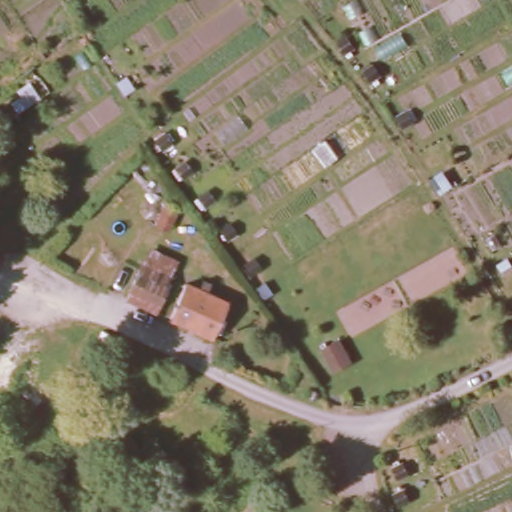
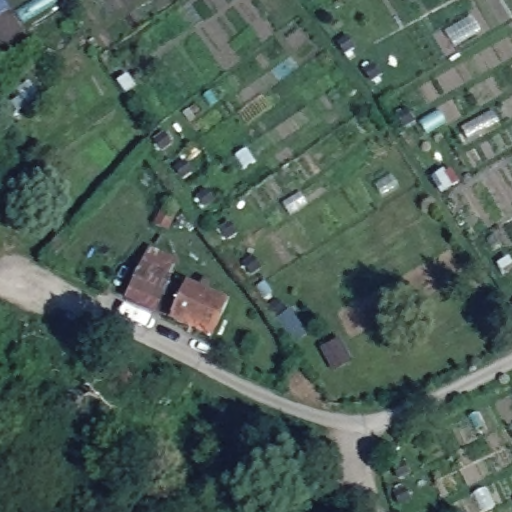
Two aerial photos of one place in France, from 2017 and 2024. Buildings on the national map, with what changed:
unchanged [(176,261),(161,293),(137,282),(151,250),(176,261)]
unchanged [(202,289),(206,281),(215,285),(212,292),(231,303),(214,337),(172,315),(167,312),(174,296),(179,299),(187,281),(202,289)]

